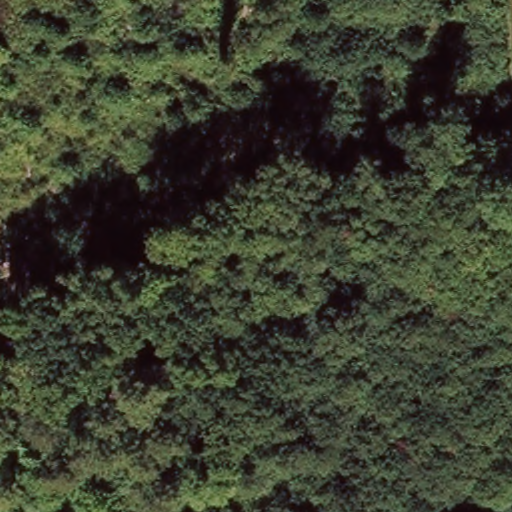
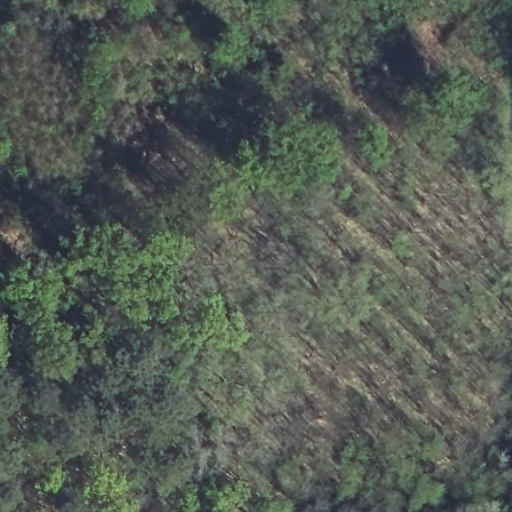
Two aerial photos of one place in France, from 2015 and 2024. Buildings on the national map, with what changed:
[]

